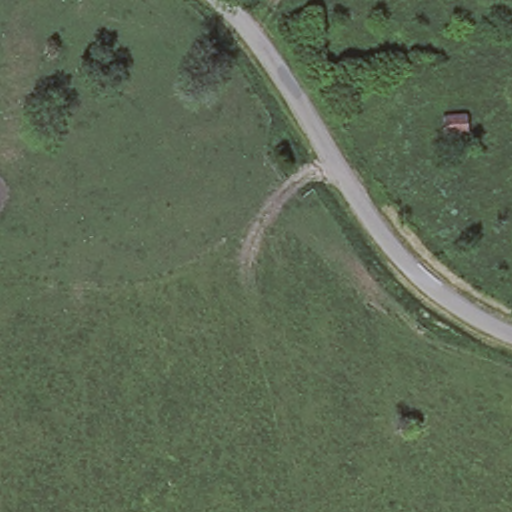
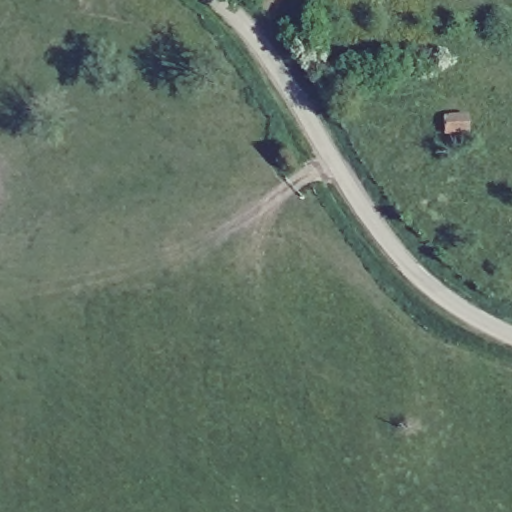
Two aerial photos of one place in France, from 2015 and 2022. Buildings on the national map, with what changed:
unchanged [(442,120),(463,117),(465,134),(443,135),(442,120)]

